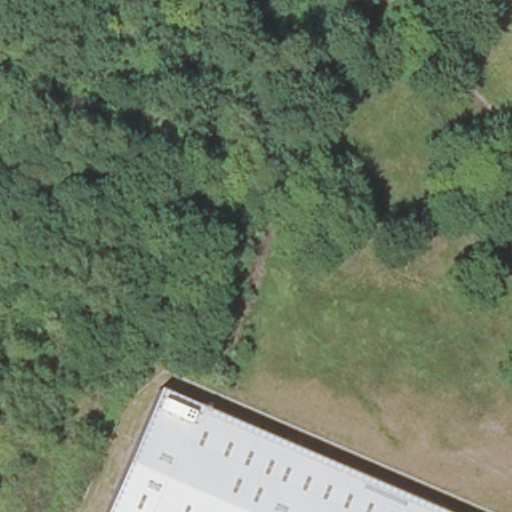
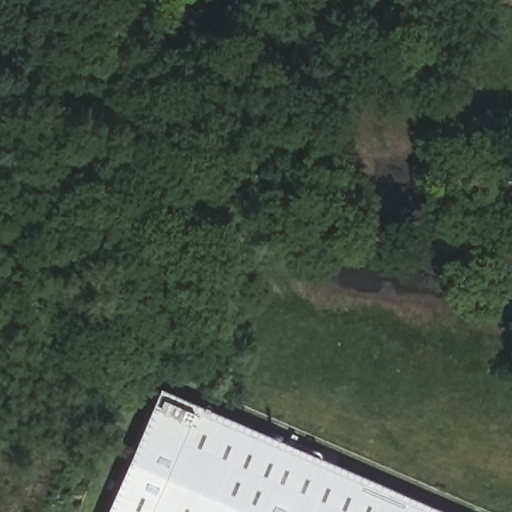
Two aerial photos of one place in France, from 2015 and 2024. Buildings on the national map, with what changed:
unchanged [(433,512),(100,512),(152,391),(433,512)]

